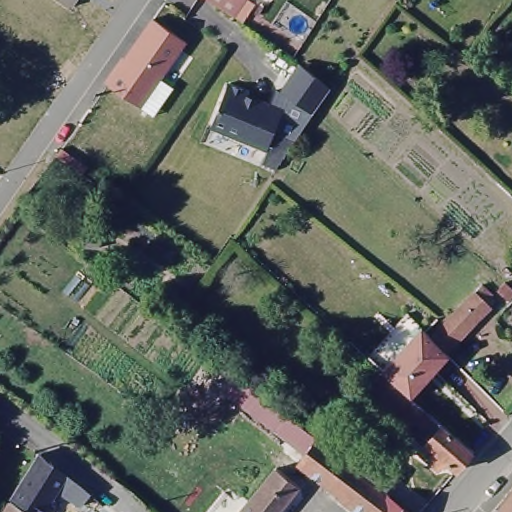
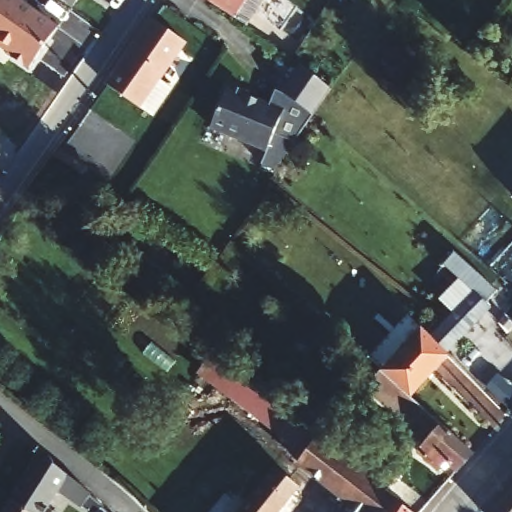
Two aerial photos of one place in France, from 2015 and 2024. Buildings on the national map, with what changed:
new [(0,0),(21,0),(58,26),(28,69),(0,50),(0,0)]
unchanged [(61,0),(77,0),(71,7),(61,0)]
unchanged [(211,0),(250,0),(238,19),(211,0)]
unchanged [(153,118),(139,109),(135,106),(106,86),(151,21),(178,40),(184,44),(158,80),(172,89),(153,118)]
unchanged [(297,62),(330,88),(275,168),(263,163),(266,150),(283,110),(278,108),(268,104),(297,62)]
unchanged [(227,84),(247,92),(246,98),(256,102),(256,99),(283,110),(266,150),(210,128),(227,84)]
unchanged [(58,148),(86,168),(81,176),(53,156),(58,148)]
unchanged [(85,224),(100,226),(97,249),(83,248),(85,224)]
unchanged [(482,287),(492,298),(485,305),(490,310),(446,352),(432,338),(482,287)]
unchanged [(418,328),(426,336),(446,357),(410,398),(381,372),(418,328)]
unchanged [(381,372),(410,398),(471,454),(455,473),(445,464),(437,471),(418,453),(425,446),(416,438),(423,430),(415,422),(410,426),(367,387),(381,372)]
unchanged [(295,464),(308,448),(226,393),(241,374),(325,435),(318,443),(386,493),(409,512),(356,512),(295,464)]
unchanged [(41,449),(77,480),(68,493),(57,484),(38,512),(33,512),(12,496),(41,449)]
unchanged [(280,463),(304,483),(281,512),(241,512),(280,463)]
unchanged [(512,486),(512,512),(490,512),(512,486)]
unchanged [(88,494),(106,510),(105,512),(93,512),(81,503),(88,494)]
unchanged [(12,496),(33,512),(2,512),(12,496)]

